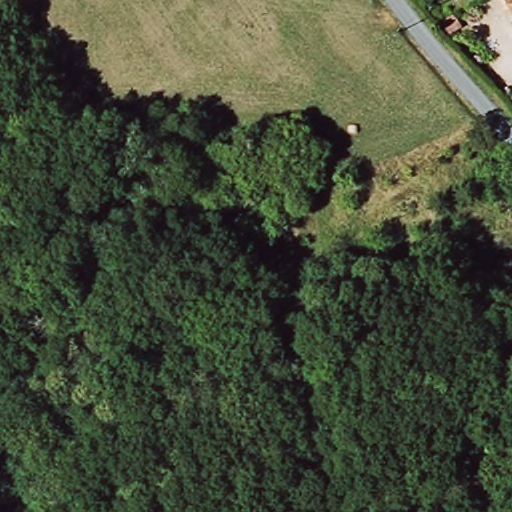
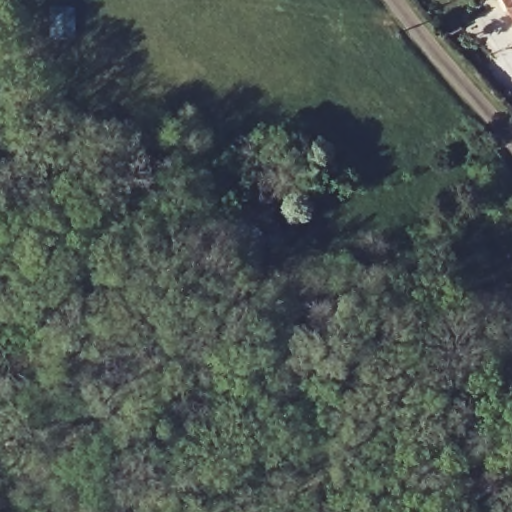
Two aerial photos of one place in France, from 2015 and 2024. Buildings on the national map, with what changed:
unchanged [(471,28),(458,36),(448,23),(464,15),(471,28)]

